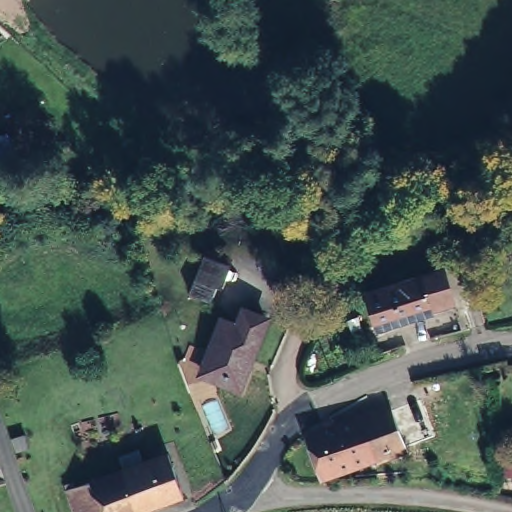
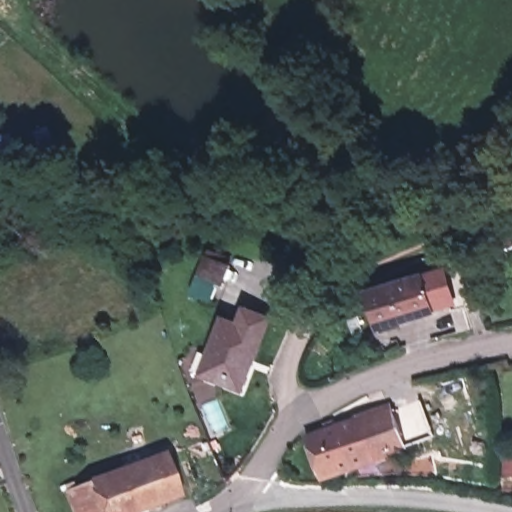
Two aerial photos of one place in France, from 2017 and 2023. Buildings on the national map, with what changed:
unchanged [(2,129),(19,161),(0,167),(0,130),(2,129)]
unchanged [(229,270),(217,291),(212,290),(205,303),(185,292),(204,258),(229,270)]
unchanged [(429,269),(439,303),(417,309),(417,313),(364,329),(354,293),(429,269)]
unchanged [(240,330),(249,314),(269,323),(252,372),(255,373),(247,394),(210,380),(217,358),(215,356),(226,325),(240,330)]
unchanged [(308,431),(389,404),(403,443),(315,473),(302,434),(308,431)]
unchanged [(27,436),(30,449),(19,453),(15,439),(27,436)]
unchanged [(67,486),(76,483),(79,488),(131,469),(126,455),(144,449),(147,462),(170,456),(183,498),(144,512),(76,512),(67,486)]

